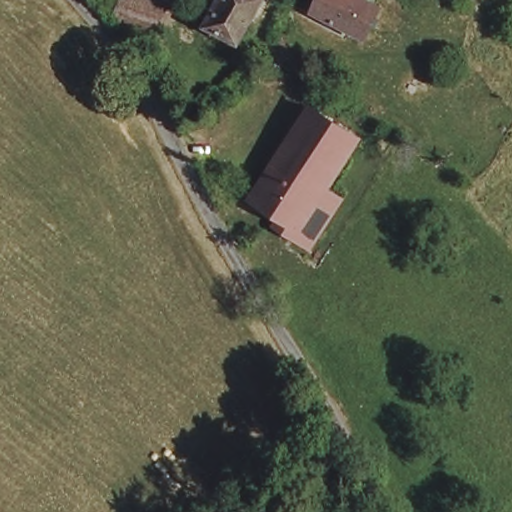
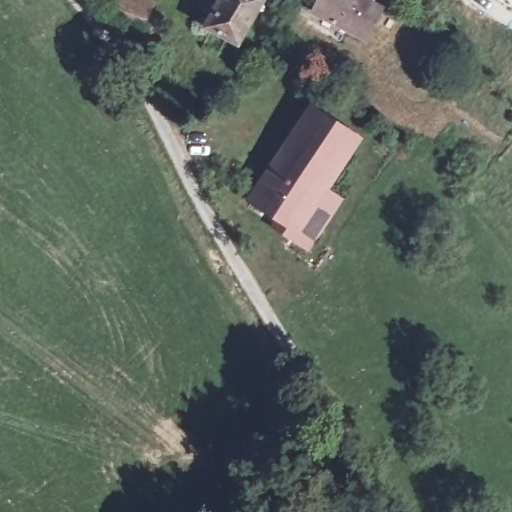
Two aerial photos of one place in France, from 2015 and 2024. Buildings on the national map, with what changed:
unchanged [(141,15),(123,10),(126,0),(157,0),(156,5),(167,10),(162,24),(156,44),(135,36),(141,15)]
unchanged [(207,32),(223,0),(266,0),(243,49),(207,32)]
unchanged [(375,40),(317,15),(324,0),(376,0),(390,6),(375,40)]
unchanged [(306,246),(292,237),(297,228),(281,217),(252,198),(311,106),(354,137),(322,188),(336,197),(306,246)]

